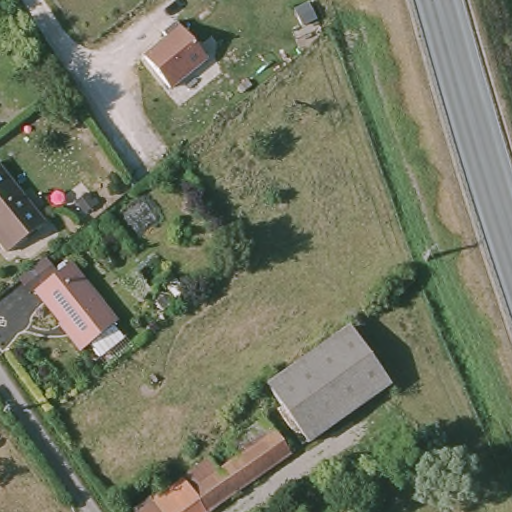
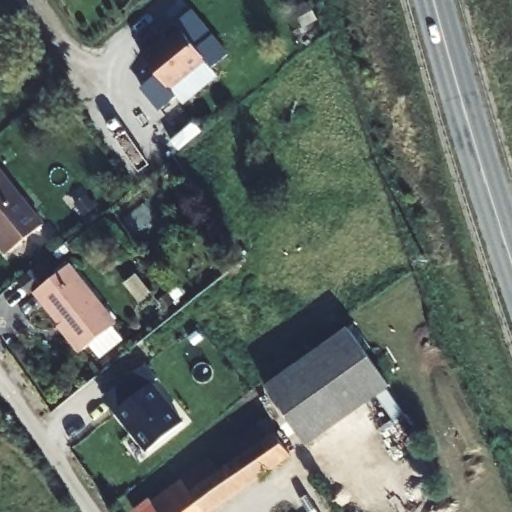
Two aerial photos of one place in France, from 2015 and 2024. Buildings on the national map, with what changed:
unchanged [(226,48),(172,91),(143,59),(166,39),(162,34),(191,5),(226,48)]
unchanged [(7,253),(0,244),(0,171),(43,224),(7,253)]
unchanged [(46,263),(56,274),(31,294),(22,282),(46,263)]
unchanged [(70,266),(117,324),(114,327),(124,339),(100,359),(90,346),(81,353),(67,335),(69,334),(36,293),(70,266)]
unchanged [(349,328),(390,385),(307,444),(267,387),(349,328)]
new [(183,423),(148,451),(104,396),(145,364),(157,379),(152,384),(183,423)]
unchanged [(149,503),(151,502),(153,506),(182,484),(182,483),(209,463),(219,477),(236,464),(227,451),(265,424),(290,459),(214,512),(136,512),(149,503)]

